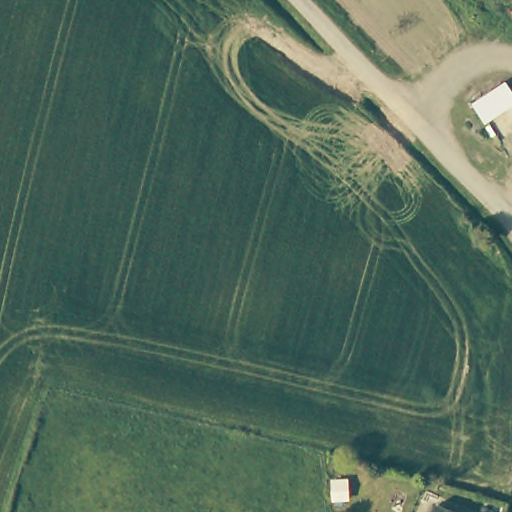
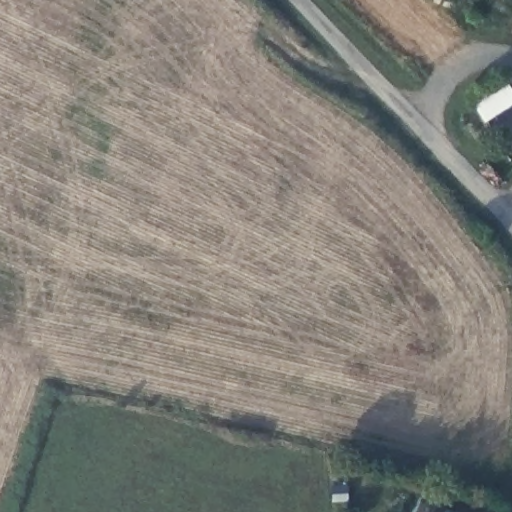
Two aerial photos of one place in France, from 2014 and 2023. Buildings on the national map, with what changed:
unchanged [(471,100),(507,78),(512,87),(512,113),(486,128),(471,100)]
unchanged [(438,507),(451,512),(436,512),(438,507)]

